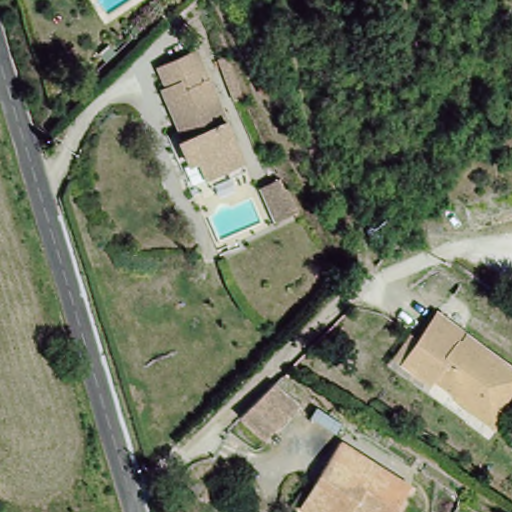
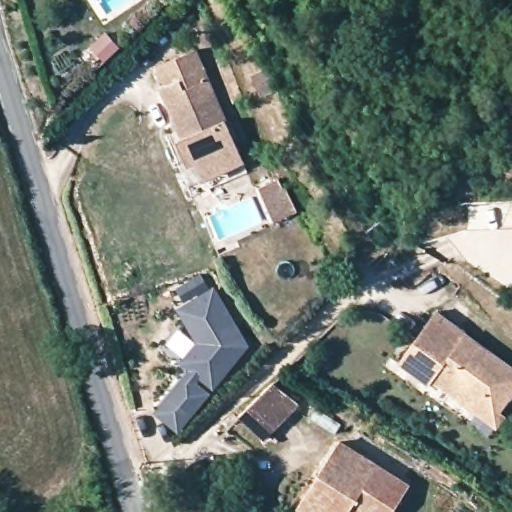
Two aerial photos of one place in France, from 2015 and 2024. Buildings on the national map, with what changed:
unchanged [(187,56),(193,55),(237,166),(202,180),(195,164),(185,168),(179,146),(185,141),(181,131),(173,133),(157,91),(164,89),(153,66),(187,56)]
unchanged [(286,176),(302,209),(276,221),(260,187),(286,176)]
new [(214,287),(250,347),(177,435),(154,411),(189,371),(180,363),(197,344),(177,311),(214,287)]
unchanged [(430,376),(413,364),(405,358),(428,324),(440,306),(512,357),(512,389),(501,405),(492,418),(430,376)]
unchanged [(278,375),(307,401),(268,439),(240,414),(278,375)]
unchanged [(350,446),(410,483),(392,512),(360,512),(352,507),(349,512),(309,512),(300,507),(330,459),(342,440),(350,446)]

